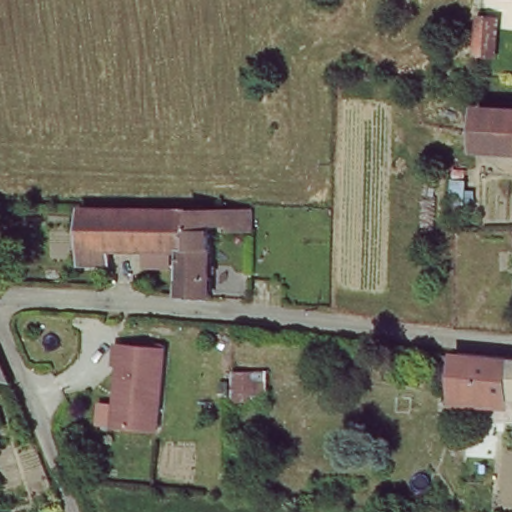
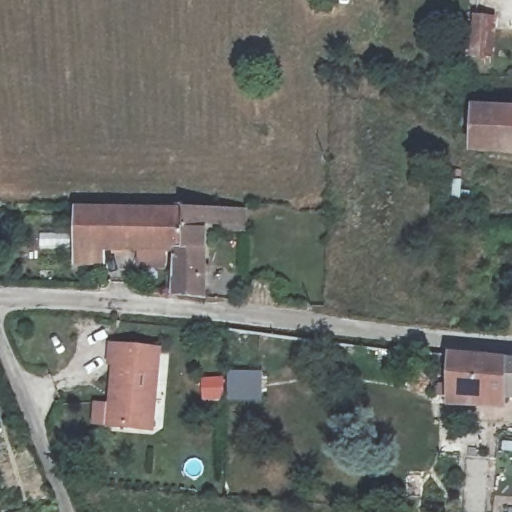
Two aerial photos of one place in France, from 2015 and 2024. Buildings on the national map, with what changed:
unchanged [(497,18),(495,61),(469,60),(471,17),(497,18)]
unchanged [(479,112),(480,108),(507,109),(506,146),(478,146),(479,112)]
unchanged [(512,109),(512,146),(506,146),(507,109),(512,109)]
unchanged [(239,210),(238,232),(203,232),(201,300),(171,297),(171,273),(172,255),(169,256),(100,252),(100,268),(78,267),(80,209),(181,210),(239,210)]
unchanged [(169,256),(171,273),(110,271),(113,255),(169,256)]
unchanged [(272,348),(270,385),(263,385),(261,404),(234,402),(236,346),(272,348)]
unchanged [(115,367),(105,366),(108,348),(155,353),(147,433),(109,429),(115,367)]
unchanged [(509,396),(508,406),(453,398),(454,360),(512,365),(512,396),(509,396)]
unchanged [(0,385),(0,377),(5,386),(0,385)]

